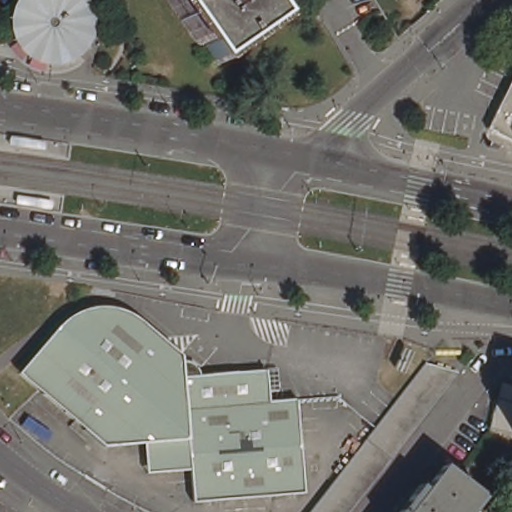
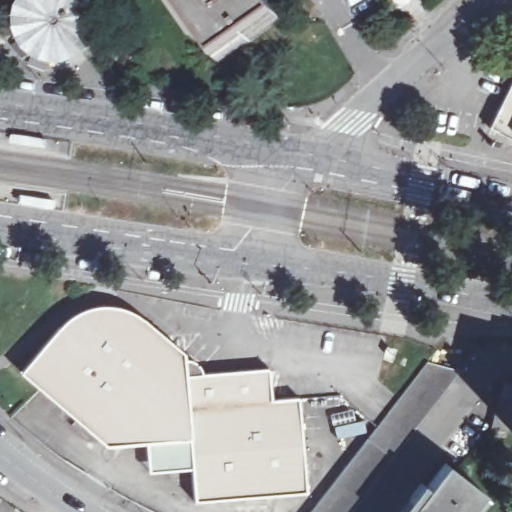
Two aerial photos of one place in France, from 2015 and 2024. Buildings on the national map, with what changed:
unchanged [(95,1),(95,2),(98,10),(100,17),(101,29),(100,36),(93,35),(91,42),(90,45),(88,48),(86,51),(85,54),(82,57),(80,59),(77,62),(75,64),(71,66),(68,67),(65,69),(62,70),(58,71),(55,71),(51,72),(48,72),(45,72),(41,71),(37,70),(35,69),(31,68),(28,66),(25,65),(22,62),(20,60),(17,58),(15,55),(12,52),(10,50),(9,47),(7,43),(6,40),(5,37),(5,33),(5,30),(5,26),(5,22),(5,19),(6,16),(7,12),(8,9),(10,6),(11,3),(13,0),(84,0),(85,2),(88,5),(95,1)]
unchanged [(221,57),(181,0),(274,0),(282,13),(221,57)]
unchanged [(512,79),(512,136),(489,124),(512,79)]
unchanged [(75,318),(79,315),(83,312),(87,311),(93,308),(104,306),(109,305),(115,305),(120,305),(125,306),(130,307),(135,308),(141,310),(147,312),(192,351),(195,372),(275,365),(277,397),(305,395),(313,488),(201,498),(196,435),(110,442),(26,371),(67,324),(75,318)]
unchanged [(430,357),(460,366),(384,465),(347,512),(308,512),(348,461),(430,357)]
unchanged [(512,424),(512,428),(511,428),(512,424)]
unchanged [(469,512),(400,512),(423,483),(430,488),(448,465),(484,493),(469,512)]

